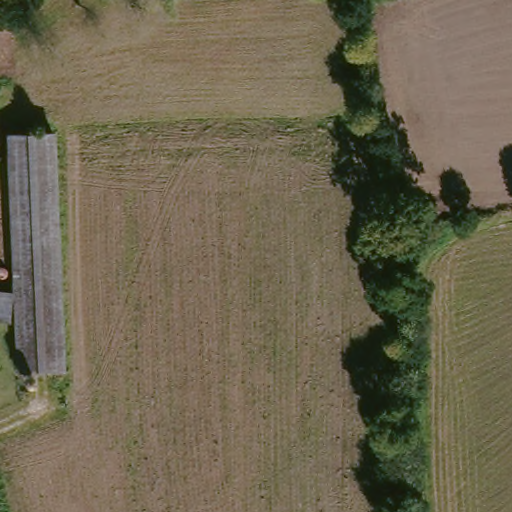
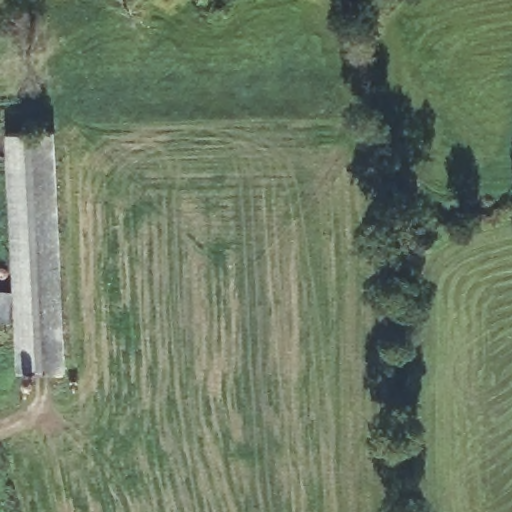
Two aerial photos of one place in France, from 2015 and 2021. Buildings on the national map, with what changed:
unchanged [(62,135),(56,380),(9,380),(16,137),(62,135)]
unchanged [(0,299),(1,300),(0,306),(0,299)]

